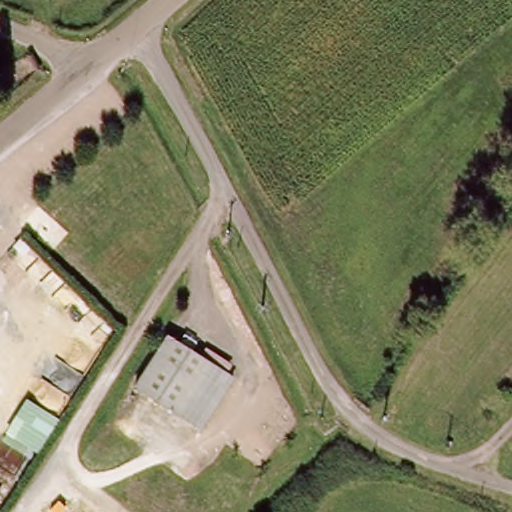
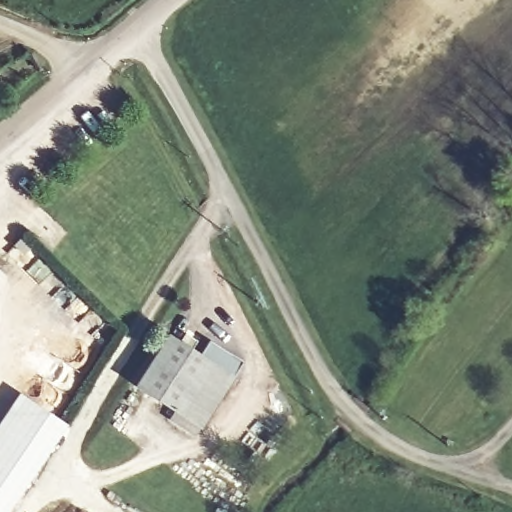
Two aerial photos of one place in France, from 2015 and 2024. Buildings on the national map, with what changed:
unchanged [(181,411),(177,414),(133,386),(166,333),(212,363),(181,411)]
new [(213,339),(247,361),(235,376),(204,357),(213,339)]
unchanged [(235,376),(202,429),(177,414),(181,411),(212,363),(235,376)]
new [(68,424),(9,512),(0,512),(0,422),(20,393),(68,424)]
demolished [(50,432),(30,461),(2,441),(21,412),(50,432)]

